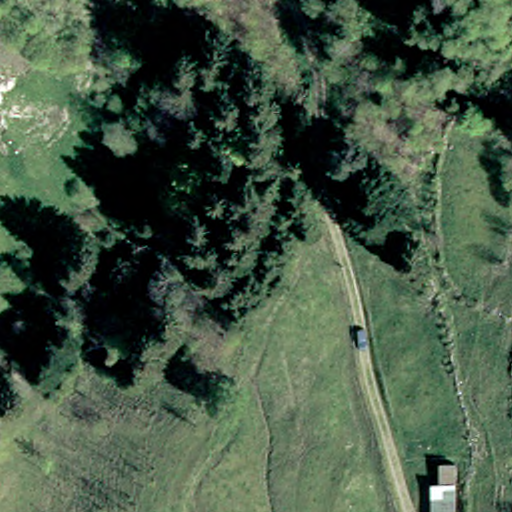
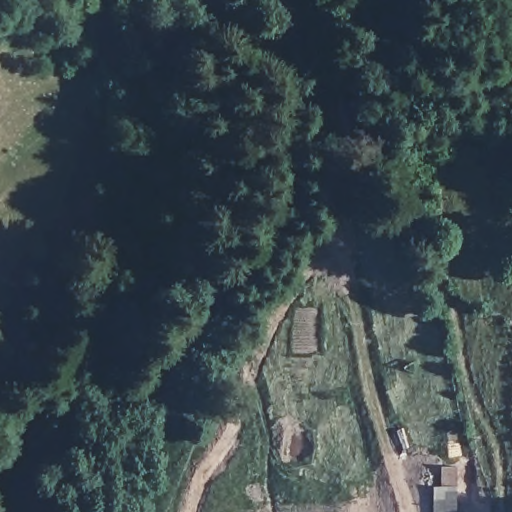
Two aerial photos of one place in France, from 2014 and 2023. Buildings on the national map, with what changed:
unchanged [(447,467),(461,469),(461,512),(438,512),(439,490),(447,488),(447,467)]

